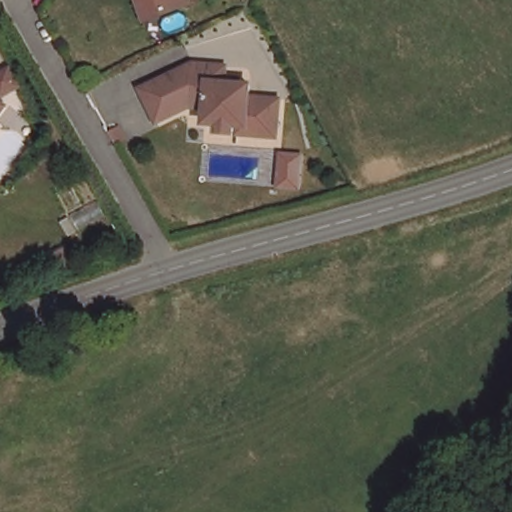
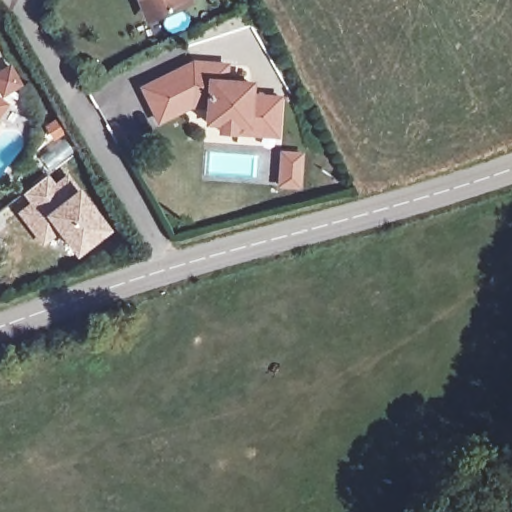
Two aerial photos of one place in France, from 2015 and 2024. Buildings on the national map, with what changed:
unchanged [(149,11),(144,0),(174,0),(149,11)]
unchanged [(240,127),(240,119),(232,118),(232,125),(217,124),(217,117),(205,117),(206,101),(190,101),(158,117),(150,100),(142,85),(168,71),(192,58),(225,60),(224,76),(229,76),(229,70),(238,70),(238,76),(250,77),(248,89),(279,91),(278,120),(277,129),(240,127)]
unchanged [(5,74),(15,87),(0,99),(0,78),(5,74)]
new [(40,154),(38,152),(53,141),(43,125),(55,117),(65,133),(62,135),(70,148),(47,168),(37,155),(40,154)]
new [(281,152),(300,154),(298,186),(278,185),(281,152)]
new [(14,211),(27,201),(21,192),(48,171),(55,180),(66,172),(110,229),(74,256),(57,236),(41,248),(14,211)]

